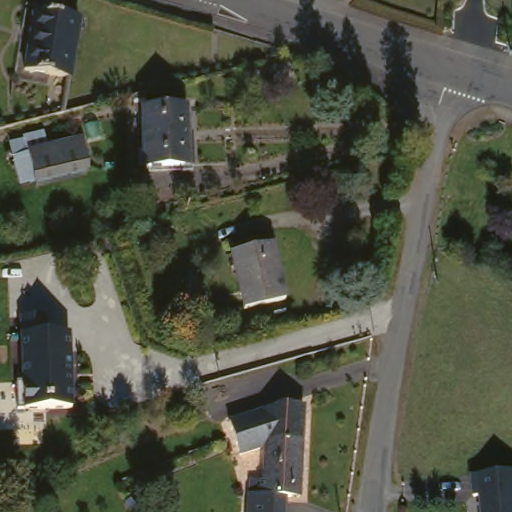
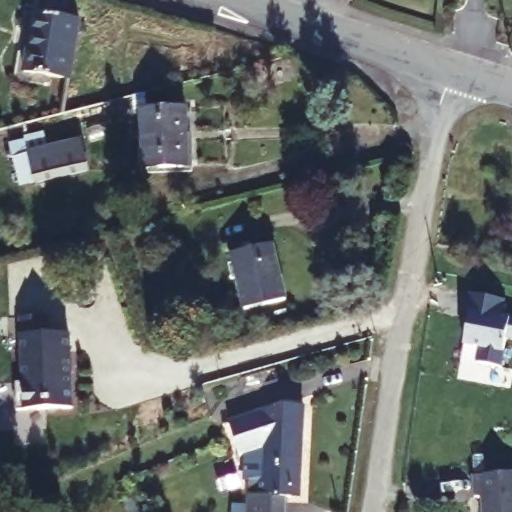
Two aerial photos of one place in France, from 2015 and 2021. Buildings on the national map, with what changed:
unchanged [(77,17),(68,77),(24,71),(32,11),(77,17)]
unchanged [(185,135),(179,135),(179,165),(142,166),(141,105),(184,105),(185,135)]
unchanged [(87,169),(31,183),(18,186),(5,139),(38,129),(42,142),(77,132),(87,169)]
unchanged [(273,240),(286,297),(246,306),(233,250),(273,240)]
new [(472,308),(468,308),(472,290),(505,297),(502,314),(512,316),(512,335),(507,334),(501,365),(478,360),(481,344),(465,340),(472,308)]
unchanged [(18,377),(25,377),(27,326),(27,308),(52,308),(51,327),(74,327),(72,407),(17,405),(18,377)]
unchanged [(296,492),(286,492),(286,512),(248,512),(249,478),(261,479),(262,443),(238,455),(224,423),(274,400),(297,400),(296,492)]
unchanged [(482,492),(475,493),(473,471),(512,467),(512,512),(484,512),(482,492)]

